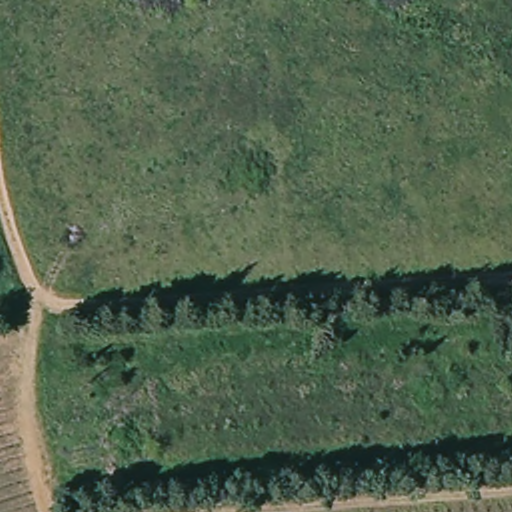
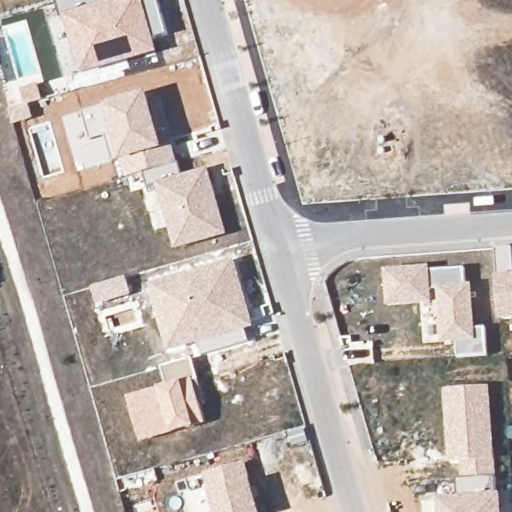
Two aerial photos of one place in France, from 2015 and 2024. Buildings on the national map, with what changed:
new [(60,16),(55,0),(104,0),(105,2),(113,0),(157,0),(168,34),(153,38),(158,53),(80,74),(64,17),(60,16)]
new [(148,188),(143,172),(125,177),(120,161),(115,162),(106,136),(92,140),(83,111),(105,104),(145,90),(165,149),(174,146),(182,176),(208,168),(228,235),(174,250),(156,186),(148,188)]
new [(497,276),(495,248),(512,247),(512,319),(500,320),(497,276)]
new [(200,344),(169,353),(149,285),(235,259),(255,327),(245,329),(250,342),(202,356),(200,344)]
new [(431,271),(464,268),(465,284),(472,284),(476,327),(485,326),(487,355),(457,357),(455,340),(441,341),(436,289),(430,289),(431,304),(387,306),(384,268),(430,265),(431,271)]
new [(157,388),(165,385),(160,367),(193,357),(203,394),(197,396),(205,424),(195,426),(170,434),(140,442),(127,396),(157,388)]
new [(489,385),(495,460),(497,493),(501,492),(502,512),(437,512),(436,498),(456,496),(455,480),(462,479),(461,462),(448,462),(445,389),(489,385)]
new [(205,474),(246,462),(250,479),(259,512),(214,512),(208,492),(205,474)]

